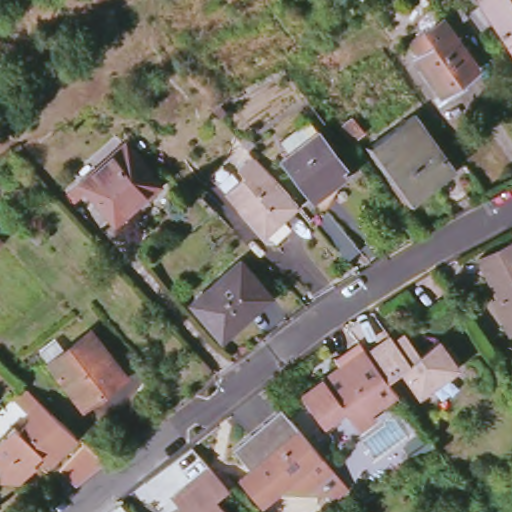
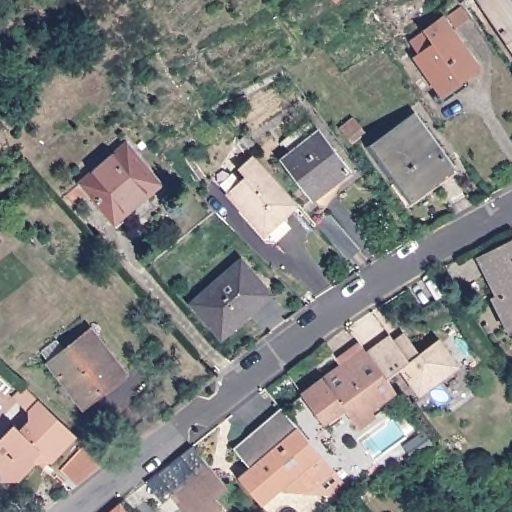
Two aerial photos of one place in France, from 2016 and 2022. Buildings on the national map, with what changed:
unchanged [(512,46),(479,0),(509,0),(512,4),(512,46)]
unchanged [(462,5),(468,14),(455,23),(448,15),(462,5)]
unchanged [(448,85),(443,89),(415,52),(418,49),(410,38),(426,27),(425,25),(442,14),(479,63),(462,75),(467,80),(452,90),(448,85)]
unchanged [(370,150),(414,116),(453,167),(410,201),(370,150)]
unchanged [(283,160),(290,154),(281,142),(300,127),(305,133),(313,126),(318,132),(320,131),(352,171),(314,200),(283,160)]
unchanged [(282,250),(273,250),(255,230),(257,227),(223,189),(230,182),(213,164),(240,139),(306,210),(295,221),(294,240),(282,250)]
unchanged [(100,200),(97,204),(80,184),(128,146),(162,187),(145,200),(143,198),(142,196),(113,217),(100,200)]
unchanged [(318,224),(329,213),(360,247),(350,258),(318,224)]
unchanged [(512,245),(512,329),(509,330),(476,263),(512,245)]
unchanged [(194,301),(245,260),(273,295),(222,336),(194,301)]
unchanged [(387,330),(394,339),(404,331),(416,347),(435,333),(455,359),(417,388),(397,362),(384,373),(364,347),(387,330)]
unchanged [(71,352),(95,334),(127,375),(105,390),(71,352)]
unchanged [(105,390),(106,395),(86,410),(43,354),(60,342),(69,354),(71,352),(105,390)]
unchanged [(364,347),(384,373),(394,386),(370,404),(374,410),(356,423),(345,409),(338,407),(322,420),(300,391),(325,371),(328,376),(338,369),(335,365),(362,344),(364,347)]
unchanged [(74,434),(50,460),(40,451),(32,459),(35,462),(22,477),(2,478),(2,465),(0,464),(0,440),(12,427),(17,432),(27,421),(26,411),(37,400),(74,434)]
unchanged [(359,512),(354,512),(325,509),(305,507),(282,505),(278,501),(270,508),(249,483),(260,475),(236,445),(284,405),(351,486),(367,505),(359,512)]
unchanged [(76,487),(60,471),(85,445),(105,463),(76,487)]
unchanged [(172,495),(210,463),(230,486),(217,496),(231,512),(186,512),(172,495)]
unchanged [(133,512),(106,512),(122,499),(133,512)]

